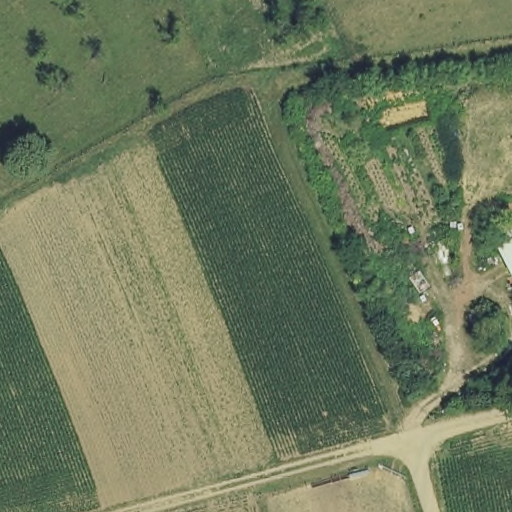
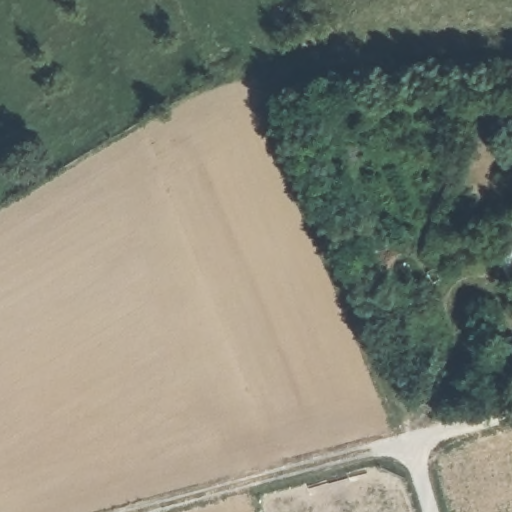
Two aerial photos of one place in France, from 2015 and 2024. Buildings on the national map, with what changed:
unchanged [(511,275),(487,228),(512,216),(512,275),(511,275)]

